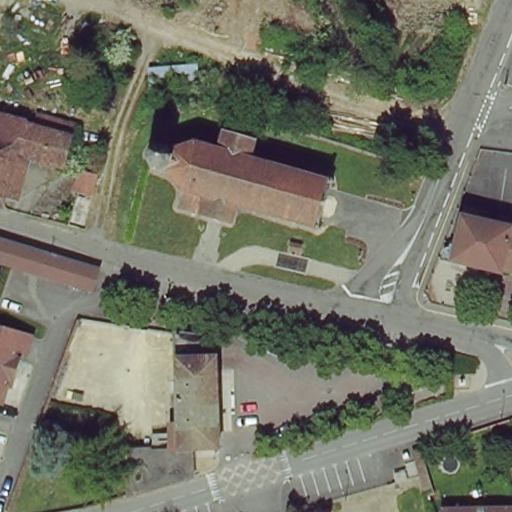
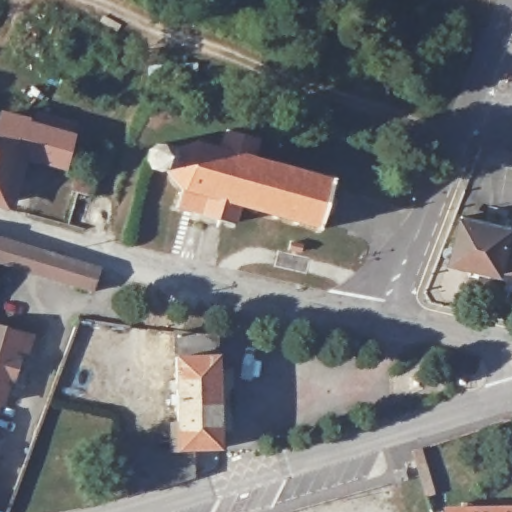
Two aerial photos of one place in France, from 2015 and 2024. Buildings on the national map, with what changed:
unchanged [(24,125),(22,131),(47,137),(50,127),(68,131),(58,171),(15,161),(0,210),(0,119),(24,125)]
unchanged [(240,205),(236,222),(178,207),(184,187),(164,170),(160,172),(155,171),(152,169),(145,160),(147,150),(158,141),(167,140),(170,144),(196,142),(218,147),(225,129),(256,137),(252,157),(332,179),(318,226),(240,205)]
unchanged [(459,210),(512,222),(512,264),(449,254),(459,210)]
unchanged [(92,295),(0,266),(0,243),(13,248),(99,273),(92,295)]
unchanged [(298,248),(296,256),(285,252),(288,246),(298,248)]
unchanged [(29,336),(25,352),(17,350),(14,358),(18,359),(12,380),(8,378),(1,403),(0,403),(0,328),(29,336)]
unchanged [(127,453),(177,449),(172,337),(214,343),(218,449),(193,452),(195,478),(129,498),(127,453)]
unchanged [(512,500),(512,512),(442,512),(442,502),(512,500)]

